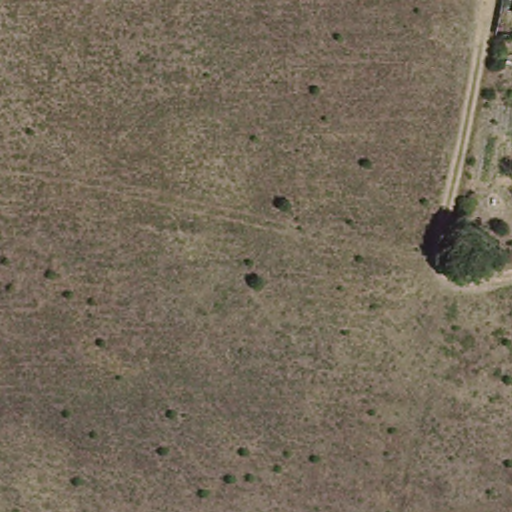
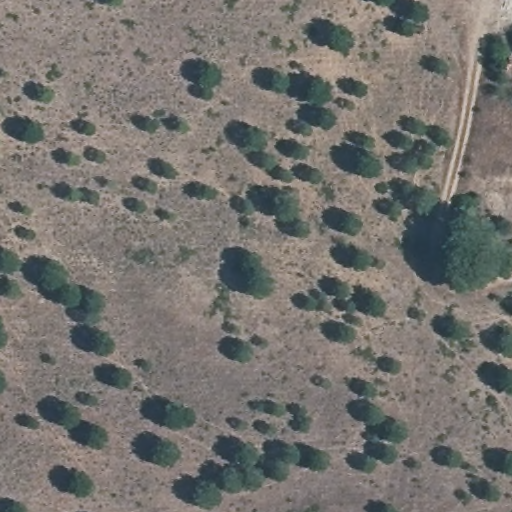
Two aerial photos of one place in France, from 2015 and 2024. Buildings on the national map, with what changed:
unchanged [(510,17),(512,7),(512,18),(510,17)]

